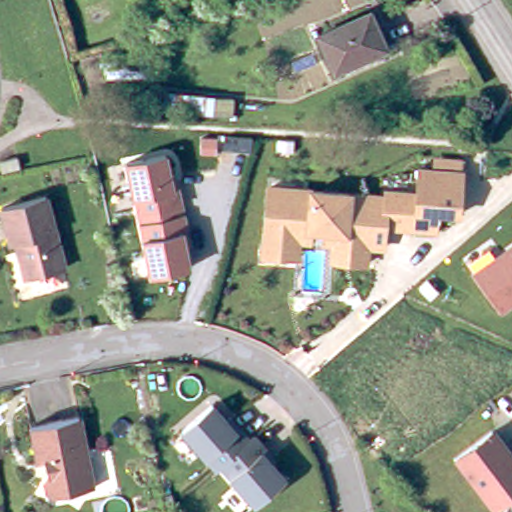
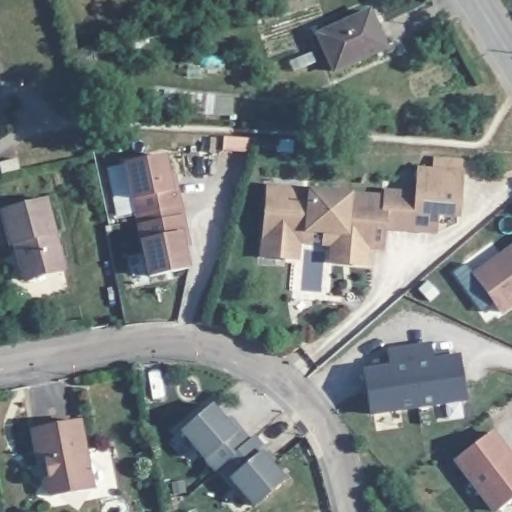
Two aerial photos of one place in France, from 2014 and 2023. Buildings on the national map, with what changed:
unchanged [(383,44),(332,66),(318,30),(369,8),(383,44)]
new [(232,114),(212,113),(150,106),(151,89),(165,90),(214,96),(233,97),(232,114)]
unchanged [(138,240),(138,227),(134,207),(130,197),(121,163),(169,153),(178,189),(183,200),(187,224),(183,231),(193,267),(146,276),(138,240)]
unchanged [(460,218),(440,215),(438,233),(387,229),(385,249),(370,249),(368,268),(329,264),(330,245),(300,243),(298,262),(260,256),(268,184),(310,186),(354,189),(365,190),(384,192),(385,187),(415,188),(418,166),(465,169),(460,218)]
unchanged [(26,276),(18,240),(11,242),(3,207),(48,194),(67,266),(26,276)]
unchanged [(512,305),(501,312),(473,271),(512,244),(512,305)]
new [(430,343),(433,357),(459,354),(466,401),(370,415),(363,368),(387,364),(385,350),(430,343)]
unchanged [(230,476),(221,467),(215,472),(205,458),(181,429),(214,403),(228,419),(236,418),(250,436),(256,435),(267,448),(262,452),(285,478),(253,505),(230,476)]
unchanged [(78,422),(88,468),(90,468),(95,490),(51,498),(43,493),(41,484),(45,475),(42,465),(35,466),(27,431),(78,422)]
unchanged [(495,432),(512,453),(512,497),(494,512),(491,512),(455,461),(495,432)]

